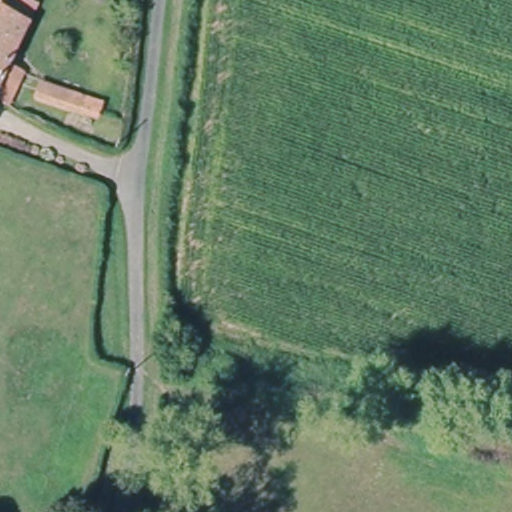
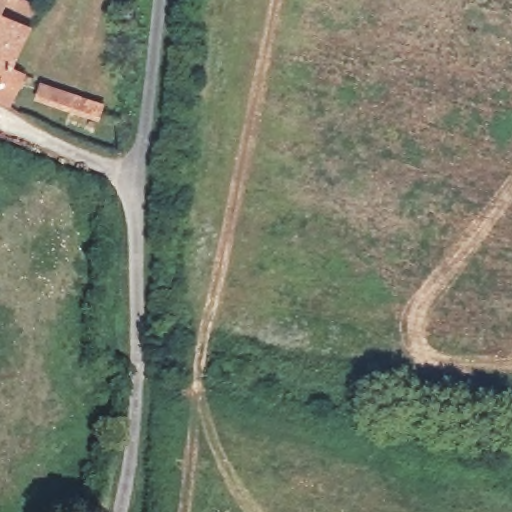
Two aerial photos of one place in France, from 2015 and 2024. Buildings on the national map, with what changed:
unchanged [(25,0),(35,4),(25,28),(5,73),(21,80),(10,106),(0,102),(0,0),(25,0)]
unchanged [(99,107),(94,120),(34,96),(39,83),(99,107)]

